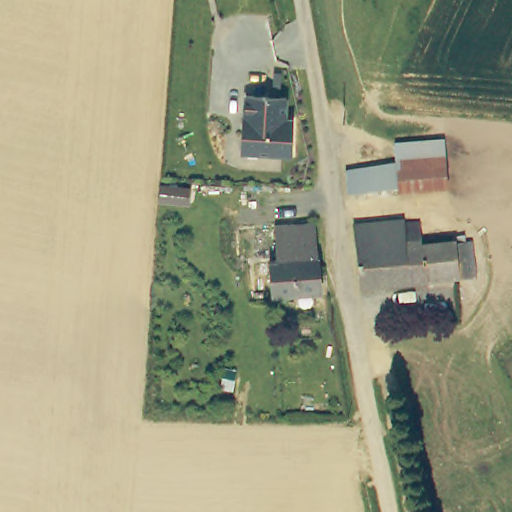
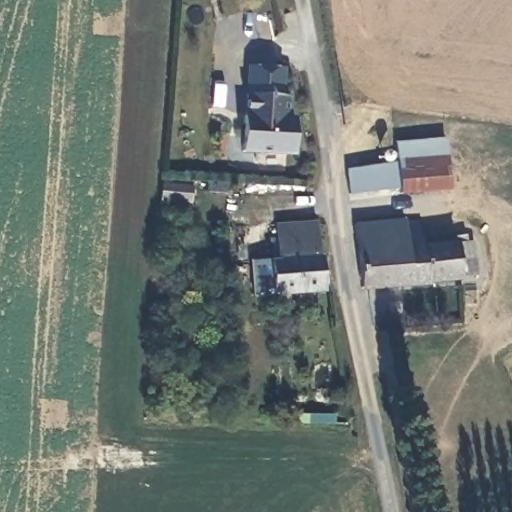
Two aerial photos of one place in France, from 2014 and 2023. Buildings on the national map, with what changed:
unchanged [(245,159),(247,125),(249,125),(250,105),(294,108),(292,128),(301,129),(299,163),(245,159)]
unchanged [(400,145),(448,143),(453,192),(403,195),(401,168),(400,145)]
unchanged [(403,195),(355,198),(353,169),(401,168),(403,195)]
unchanged [(407,225),(422,224),(424,245),(474,243),(477,278),(362,288),(354,224),(404,220),(407,225)]
unchanged [(327,292),(277,295),(274,261),(280,261),(278,226),(321,224),(327,292)]

